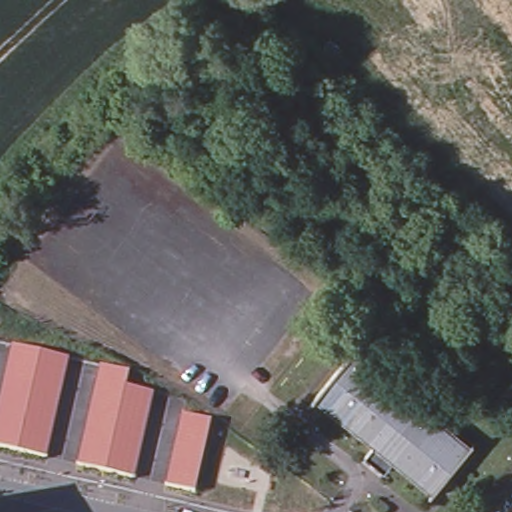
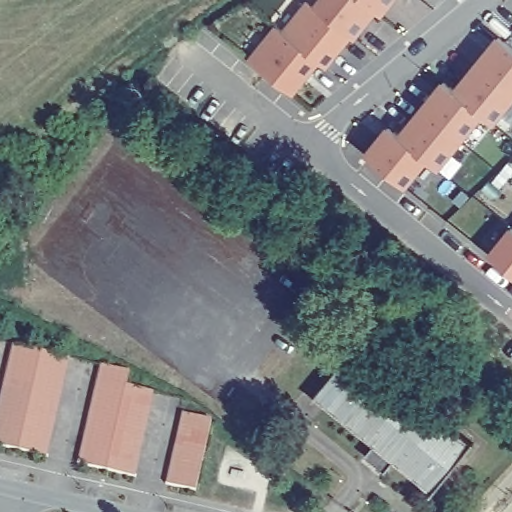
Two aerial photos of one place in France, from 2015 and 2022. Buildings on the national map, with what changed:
new [(390,0),(393,0),(399,0),(397,3),(384,17),(379,13),(368,27),(358,40),(355,38),(319,9),(319,8),(326,0),(363,0),(390,0)]
new [(286,35),(313,3),(319,9),(355,38),(328,71),(321,65),(286,35)]
unchanged [(279,30),(286,35),(321,65),(294,98),(252,63),(279,30)]
new [(508,45),(512,48),(512,94),(481,68),(491,55),(503,40),(508,45)]
new [(470,80),(481,68),(512,94),(512,107),(496,126),(485,117),(463,144),(424,112),(434,100),(447,85),(452,90),(453,90),(459,95),(470,80)]
new [(403,139),(414,125),(424,112),(463,144),(441,171),(430,162),(408,190),(369,158),(379,145),(391,130),(397,135),(403,139)]
new [(512,232),(512,275),(492,258),(512,232)]
unchanged [(1,405),(4,390),(8,377),(10,363),(14,349),(40,355),(68,362),(65,376),(63,390),(59,403),(56,416),(53,431),(50,445),(46,460),(18,452),(0,448),(0,409),(1,405)]
unchanged [(362,458),(370,449),(311,400),(348,351),(468,446),(431,492),(429,495),(389,465),(381,475),(362,458)]
unchanged [(85,438),(88,425),(91,411),(94,398),(98,383),(100,370),(129,376),(126,390),(154,396),(151,411),(148,423),(144,438),(141,451),(138,466),(134,479),(105,472),(78,466),(82,452),(85,438)]
unchanged [(171,473),(174,459),(177,445),(180,431),(183,418),(211,425),(208,438),(206,452),(203,465),(199,480),(196,493),(168,487),(171,473)]

